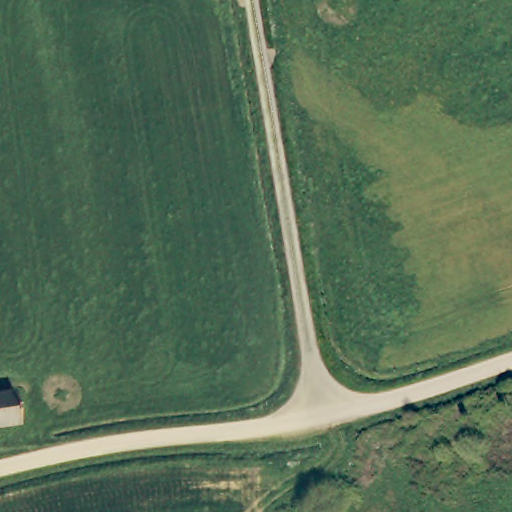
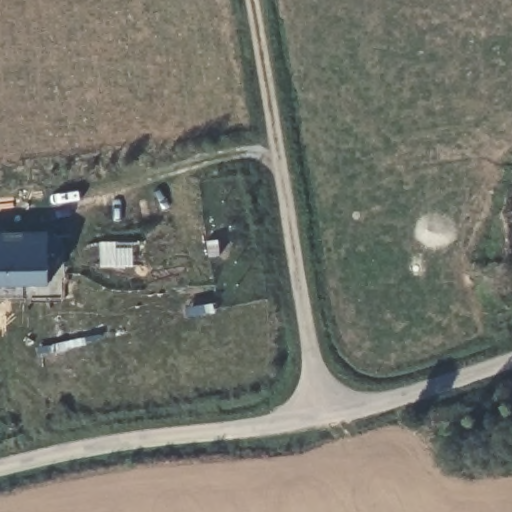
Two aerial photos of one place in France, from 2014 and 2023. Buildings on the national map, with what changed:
new [(51,283),(0,285),(0,231),(47,231),(51,283)]
demolished [(15,390),(20,422),(0,424),(0,392),(15,390)]

